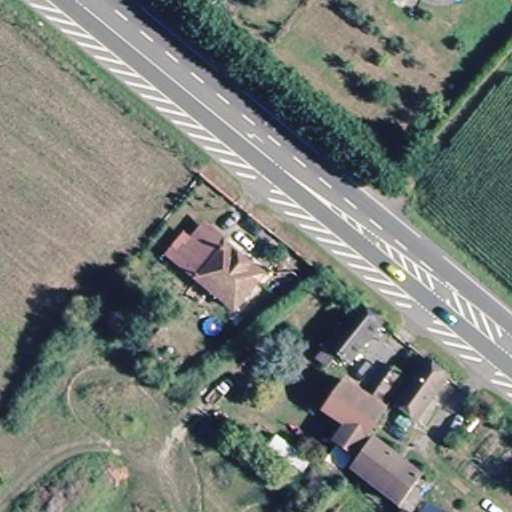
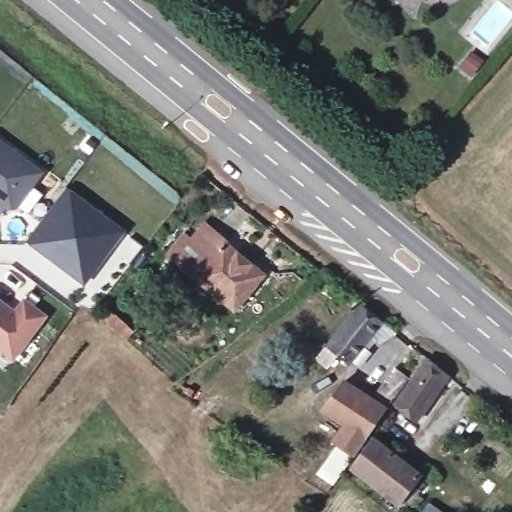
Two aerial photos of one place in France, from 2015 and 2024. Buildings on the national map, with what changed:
new [(42,174),(17,209),(9,210),(0,203),(0,142),(42,174)]
new [(69,185),(129,230),(84,285),(26,243),(69,185)]
unchanged [(236,310),(170,255),(175,249),(181,255),(205,226),(265,275),(236,310)]
new [(0,351),(0,302),(5,306),(3,310),(9,314),(11,311),(15,314),(25,301),(46,318),(24,347),(14,361),(0,351)]
unchanged [(352,363),(343,357),(332,371),(320,361),(366,305),(386,322),(352,363)]
unchanged [(346,471),(335,486),(320,476),(344,441),(340,439),(352,422),(329,407),(350,377),(376,395),(398,364),(412,374),(428,351),(451,370),(420,415),(399,400),(414,378),(411,376),(391,405),(388,409),(346,471)]
unchanged [(222,371),(239,383),(211,420),(195,409),(222,371)]
unchanged [(428,471),(422,478),(429,483),(423,492),(430,497),(423,506),(411,497),(406,503),(355,466),(378,435),(428,471)]
demolished [(251,512),(225,512),(258,465),(276,478),(251,512)]
unchanged [(451,512),(427,512),(435,501),(451,512)]

